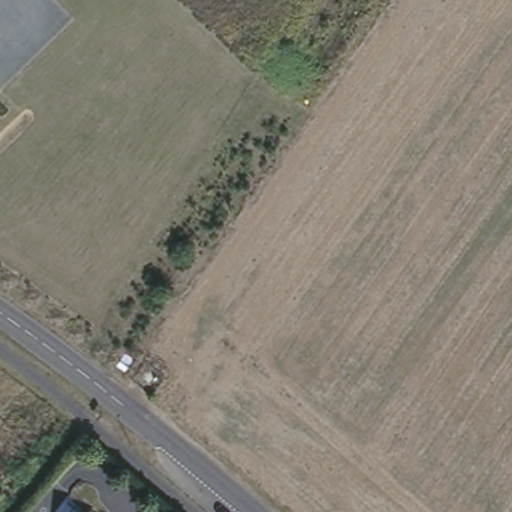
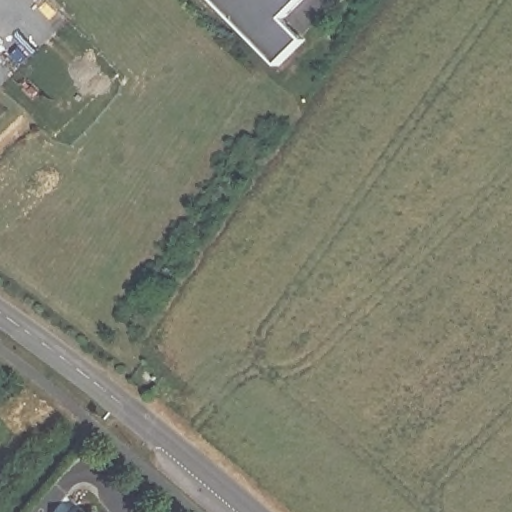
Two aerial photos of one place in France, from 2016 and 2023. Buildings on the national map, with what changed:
new [(285,13),(307,34),(280,63),(214,0),(298,0),(285,13)]

